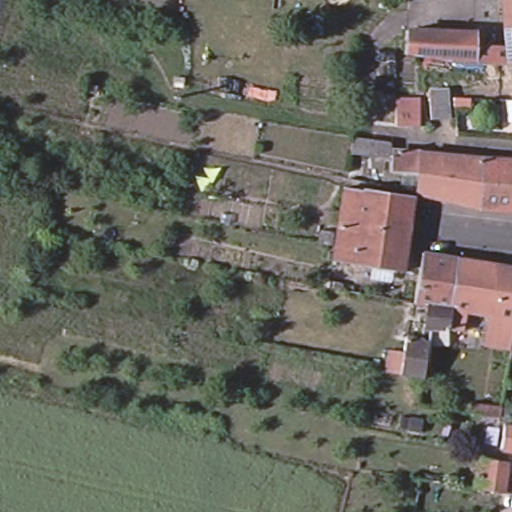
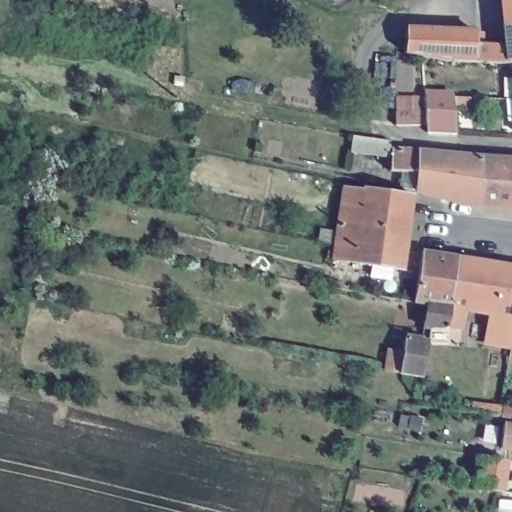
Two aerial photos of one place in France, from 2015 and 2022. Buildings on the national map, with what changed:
unchanged [(507,29),(504,0),(512,0),(512,29),(507,29)]
unchanged [(507,29),(512,29),(512,61),(510,61),(510,65),(477,64),(452,63),(422,58),(405,54),(408,29),(479,34),(478,45),(509,49),(507,29)]
unchanged [(450,91),(452,120),(432,121),(432,92),(450,91)]
unchanged [(414,101),(412,130),(395,129),(395,101),(414,101)]
unchanged [(507,123),(507,101),(512,101),(512,123),(507,123)]
unchanged [(402,178),(387,177),(388,165),(360,160),(361,144),(387,148),(385,159),(392,160),(394,156),(415,159),(477,165),(475,213),(414,198),(400,194),(402,178)]
unchanged [(475,213),(477,165),(512,169),(512,216),(475,213)]
unchanged [(381,184),(380,191),(350,186),(352,180),(381,184)]
unchanged [(324,258),(330,259),(331,253),(343,194),(359,197),(360,192),(409,202),(398,275),(328,267),(329,264),(324,264),(324,258)]
unchanged [(314,249),(317,235),(331,238),(328,252),(314,249)]
unchanged [(470,324),(467,342),(431,336),(425,374),(382,369),(384,347),(407,348),(409,331),(425,334),(428,318),(430,318),(432,300),(417,297),(425,248),(458,254),(484,258),(475,306),(467,304),(464,324),(470,324)]
unchanged [(510,312),(509,344),(484,340),(485,308),(475,306),(484,258),(512,263),(512,312),(510,312)]
unchanged [(504,444),(502,426),(497,425),(498,417),(499,412),(493,412),(494,406),(502,407),(503,399),(512,400),(512,445),(504,444)]
unchanged [(500,499),(469,494),(469,492),(474,463),(502,469),(500,498),(500,499)]

